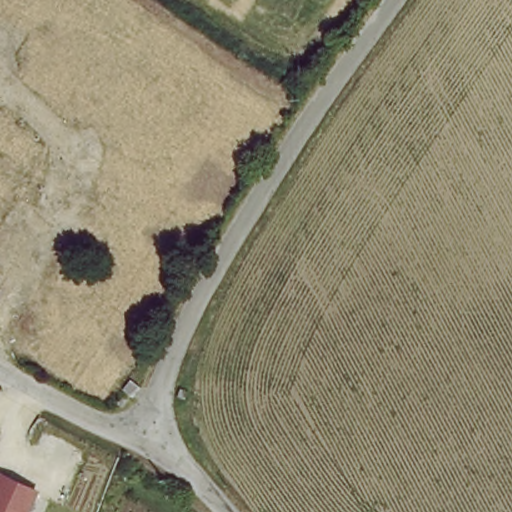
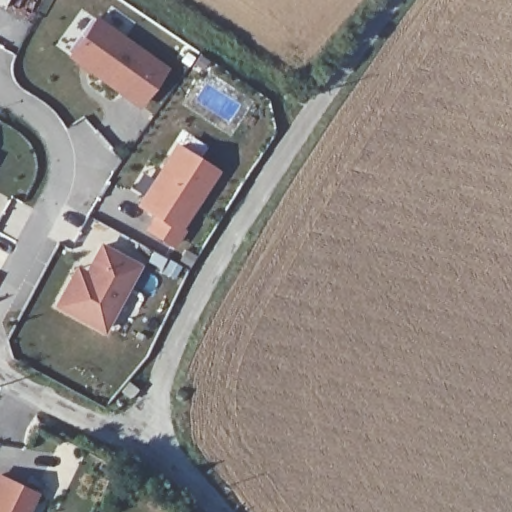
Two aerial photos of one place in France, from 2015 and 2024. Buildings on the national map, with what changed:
new [(11,9),(0,3),(0,0),(50,0),(37,23),(11,9)]
new [(173,71),(146,107),(78,57),(105,21),(173,71)]
new [(183,149),(222,174),(185,231),(187,233),(178,247),(153,231),(162,218),(145,207),(183,149)]
new [(62,306),(77,279),(82,270),(91,275),(106,248),(143,268),(107,331),(62,306)]
new [(129,383),(138,391),(130,401),(121,393),(129,383)]
unchanged [(27,512),(0,512),(0,472),(37,487),(27,512)]

